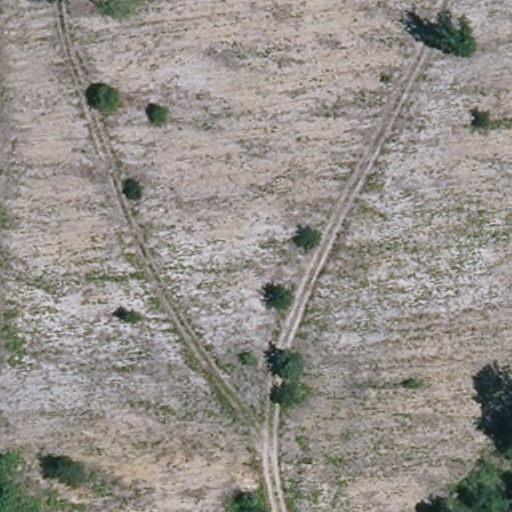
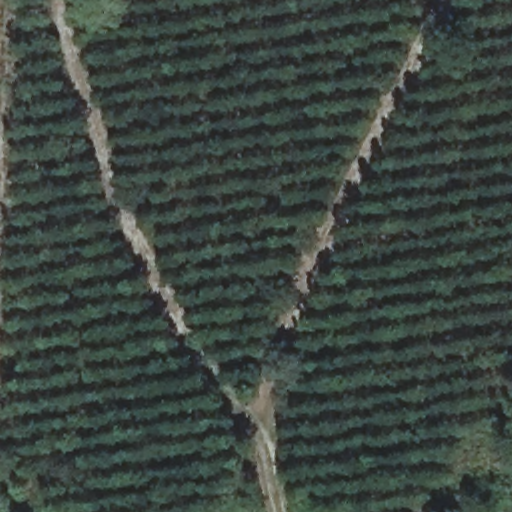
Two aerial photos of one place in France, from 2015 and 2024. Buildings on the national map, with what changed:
[]

